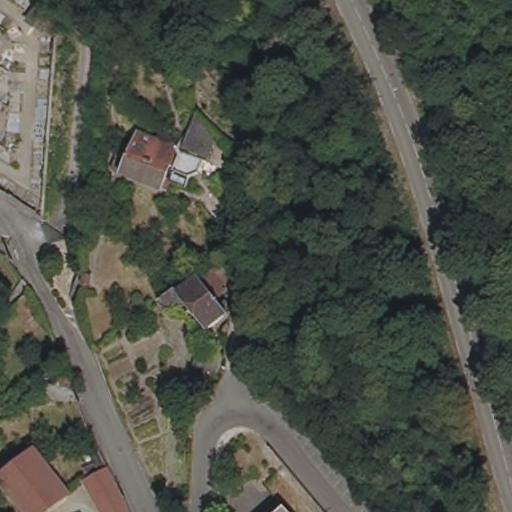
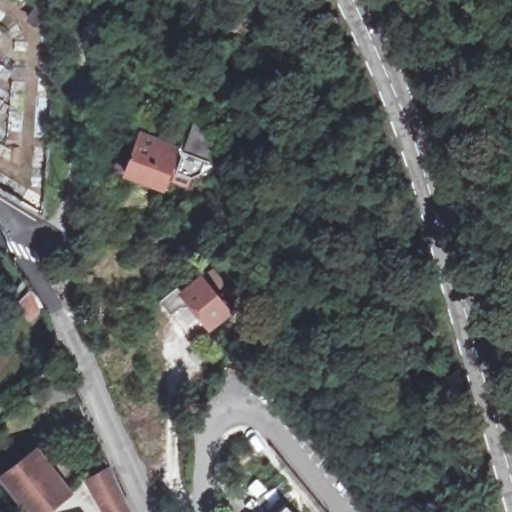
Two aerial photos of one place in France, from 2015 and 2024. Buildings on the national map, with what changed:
unchanged [(59,17),(58,38),(49,31),(47,33),(32,24),(42,6),(59,17)]
unchanged [(160,131),(179,138),(194,104),(219,133),(206,156),(178,144),(176,146),(157,139),(160,131)]
unchanged [(178,144),(206,156),(209,158),(200,178),(196,176),(192,185),(168,175),(163,186),(112,166),(123,140),(134,144),(140,131),(153,137),(157,139),(176,146),(178,144)]
unchanged [(208,295),(222,314),(217,317),(195,337),(174,309),(165,315),(154,300),(166,291),(167,291),(172,287),(174,288),(177,292),(199,273),(200,273),(227,257),(228,265),(228,269),(229,278),(208,295)]
unchanged [(61,349),(50,352),(46,339),(57,335),(61,349)]
unchanged [(219,379),(192,376),(195,355),(223,359),(219,379)]
unchanged [(73,389),(78,400),(31,409),(28,396),(69,374),(73,389)]
unchanged [(44,512),(39,512),(12,476),(48,447),(75,487),(44,512)]
unchanged [(116,467),(134,503),(139,512),(111,512),(93,475),(116,467)]
unchanged [(301,512),(278,512),(291,500),(301,512)]

